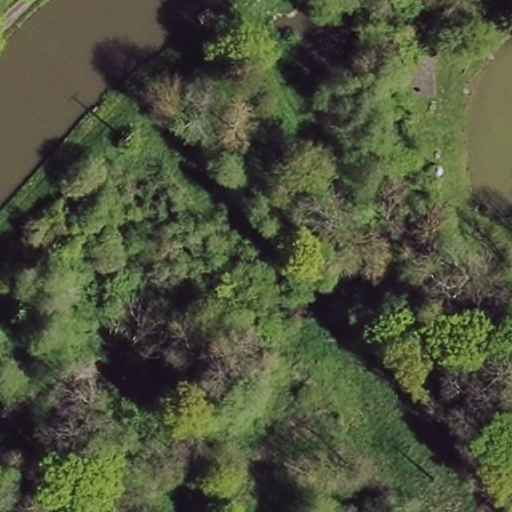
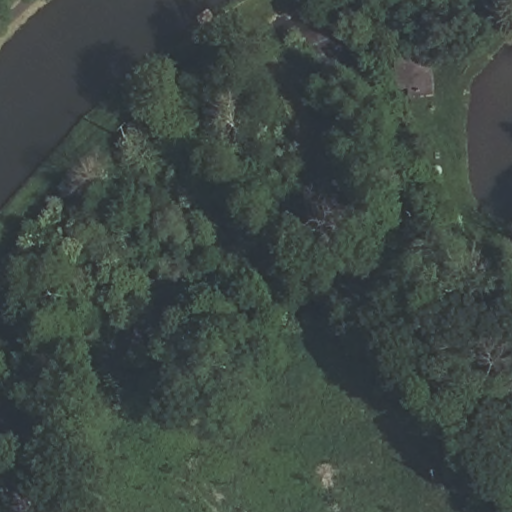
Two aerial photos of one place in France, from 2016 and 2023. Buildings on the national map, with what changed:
unchanged [(434,40),(434,96),(394,98),(392,42),(434,40)]

